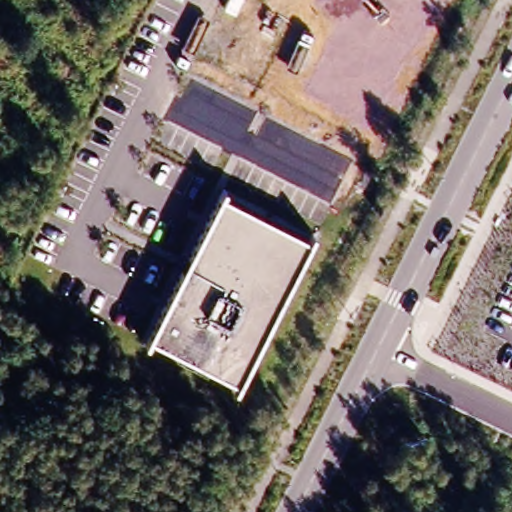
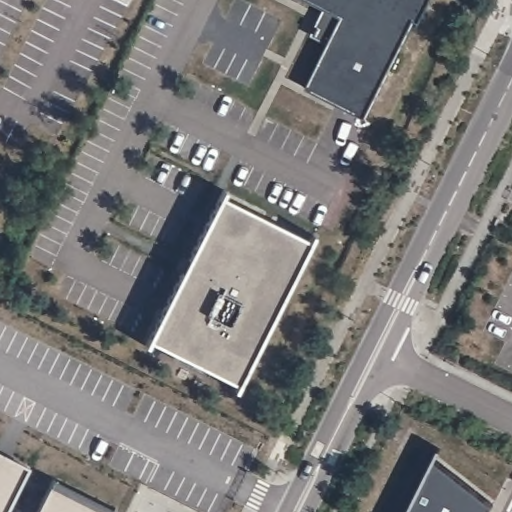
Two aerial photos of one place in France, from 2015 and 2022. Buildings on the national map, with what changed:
new [(303,85),(340,15),(311,0),(426,0),(370,113),(303,85)]
unchanged [(238,384),(150,340),(221,197),(310,240),(238,384)]
new [(30,466),(6,512),(0,512),(0,451),(30,466)]
new [(443,456),(500,497),(493,512),(415,512),(443,456)]
new [(53,478),(119,512),(37,512),(53,478)]

